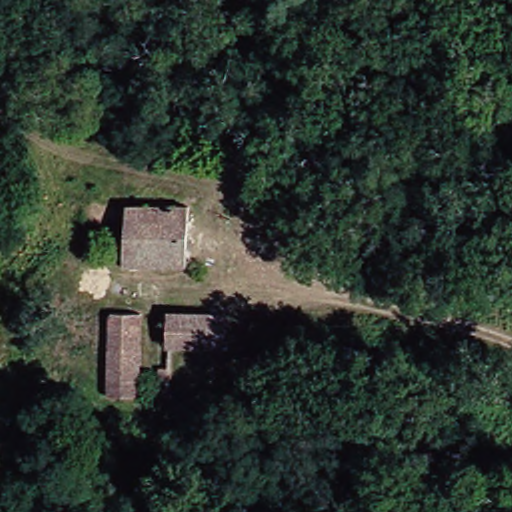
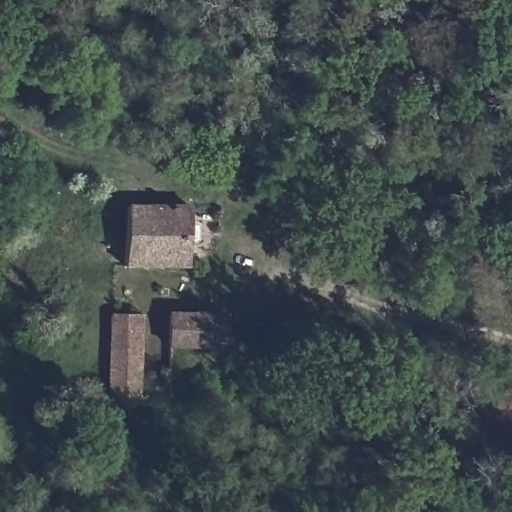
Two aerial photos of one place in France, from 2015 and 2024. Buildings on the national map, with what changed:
unchanged [(181,262),(123,263),(123,204),(183,202),(181,262)]
unchanged [(217,349),(162,351),(162,311),(220,306),(217,349)]
unchanged [(145,398),(105,396),(103,315),(146,311),(145,398)]

